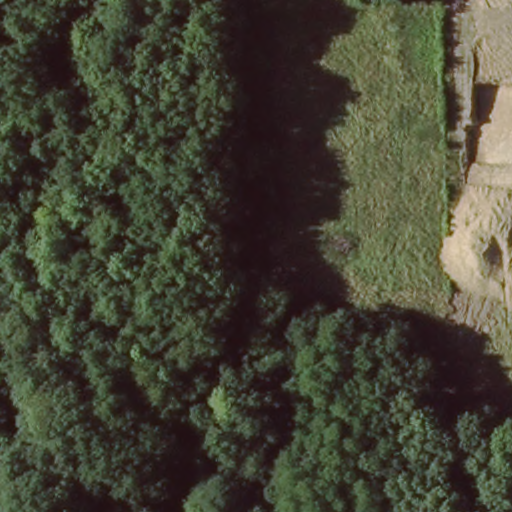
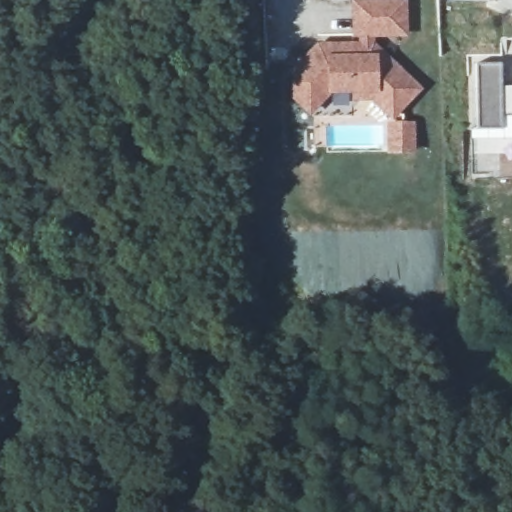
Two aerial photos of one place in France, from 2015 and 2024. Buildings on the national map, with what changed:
new [(292,69),(318,44),(360,43),(360,39),(354,38),(354,0),(410,0),(410,37),(375,39),(375,42),(425,88),(394,120),(375,102),(352,103),(352,95),(331,96),(312,117),(291,99),(292,69)]
new [(504,60),(505,78),(512,78),(512,114),(504,114),(504,124),(479,124),(479,60),(504,60)]
unchanged [(404,412),(388,411),(389,393),(405,396),(404,412)]
unchanged [(310,479),(329,481),(326,508),(304,503),(310,479)]

